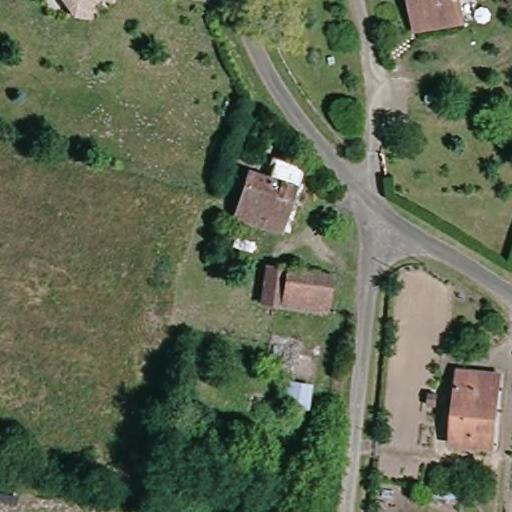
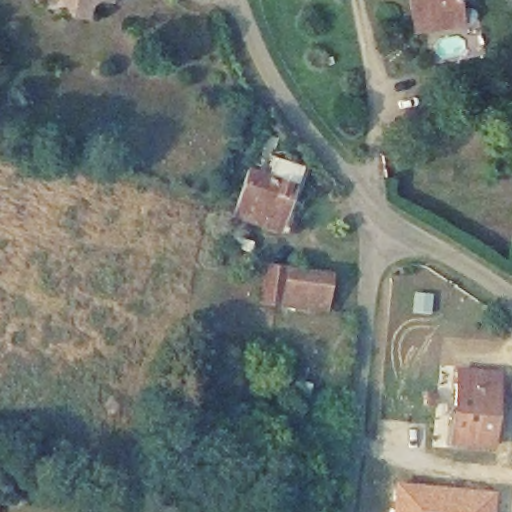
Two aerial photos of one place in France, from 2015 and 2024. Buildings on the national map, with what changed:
unchanged [(95,4),(93,16),(79,14),(72,4),(69,0),(100,0),(95,4)]
unchanged [(416,29),(411,0),(458,0),(460,10),(462,21),(416,29)]
unchanged [(276,231),(233,217),(237,205),(247,171),(268,178),(274,157),(302,166),(296,187),(291,185),(276,231)]
unchanged [(282,306),(260,303),(265,266),(287,269),(329,275),(324,311),(282,306)]
unchanged [(492,448),(451,444),(457,370),(499,374),(492,448)]
unchanged [(306,407),(284,405),(287,383),(309,386),(306,407)]
unchanged [(436,407),(427,406),(428,393),(437,393),(436,407)]
unchanged [(218,432),(208,431),(209,419),(219,420),(218,432)]
unchanged [(280,471),(270,469),(272,457),(282,459),(280,471)]
new [(498,491),(495,512),(392,512),(395,480),(498,491)]

